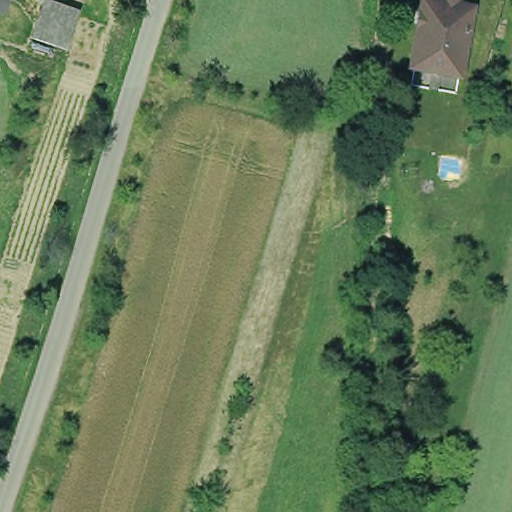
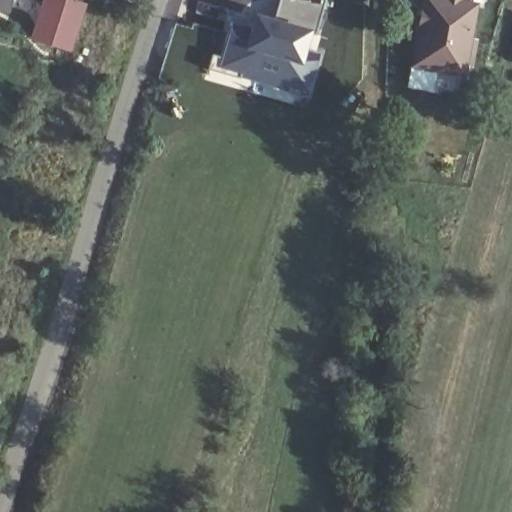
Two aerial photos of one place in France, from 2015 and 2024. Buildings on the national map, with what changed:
unchanged [(0,11),(0,0),(10,0),(7,13),(0,11)]
unchanged [(68,48),(33,38),(44,0),(53,0),(80,9),(68,48)]
new [(309,32),(304,59),(319,64),(309,97),(218,68),(231,23),(248,28),(252,13),(274,18),(279,0),(323,0),(314,33),(309,32)]
unchanged [(465,75),(409,66),(420,0),(469,0),(476,1),(465,75)]
unchanged [(512,47),(512,60),(509,59),(512,47)]

